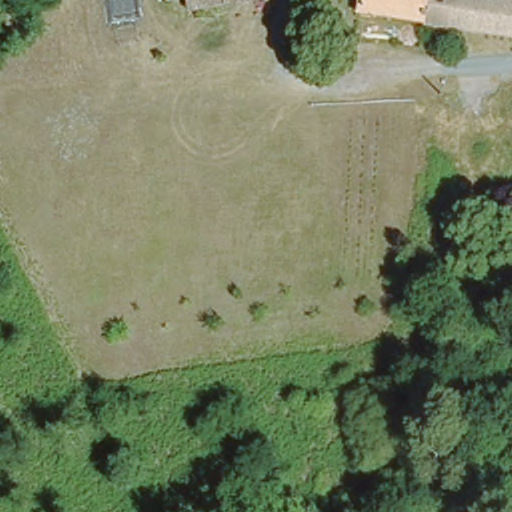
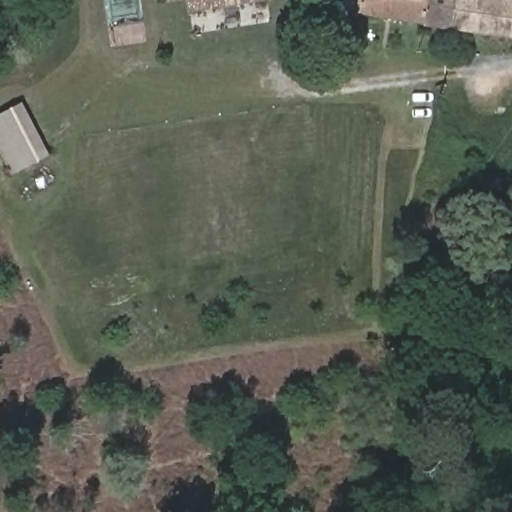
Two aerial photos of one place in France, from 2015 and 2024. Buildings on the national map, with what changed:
unchanged [(447,23),(355,12),(357,0),(450,0),(447,23)]
unchanged [(512,31),(447,23),(450,0),(512,0),(512,31)]
new [(9,175),(0,157),(0,112),(21,101),(48,154),(9,175)]

